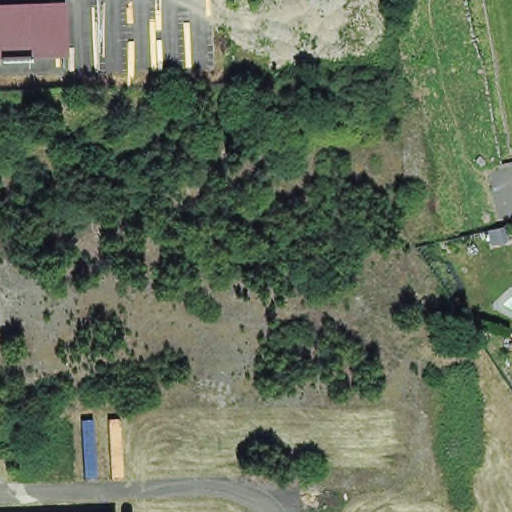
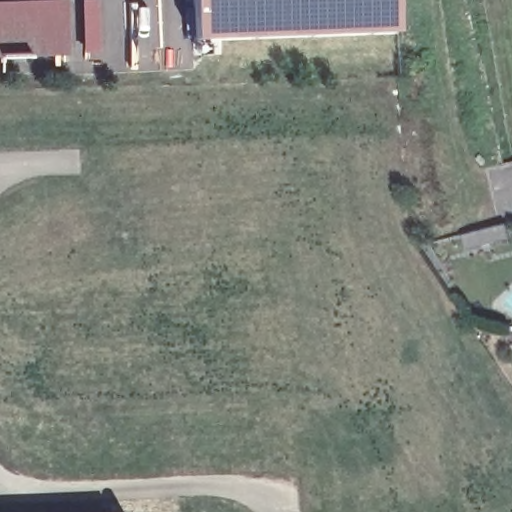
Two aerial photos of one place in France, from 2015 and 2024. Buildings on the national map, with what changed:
unchanged [(34,0),(64,0),(67,55),(0,56),(0,1),(34,0)]
new [(401,30),(197,37),(197,0),(400,0),(401,30)]

